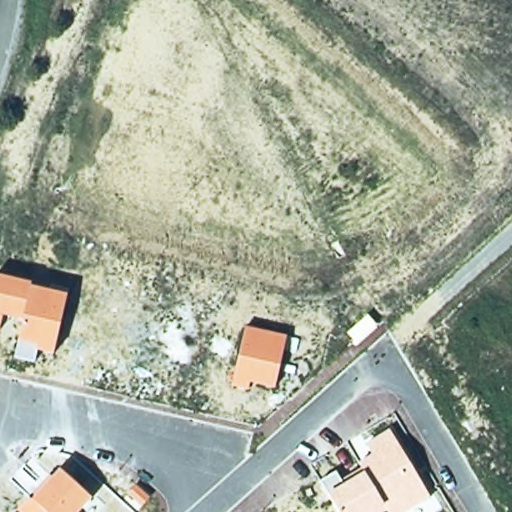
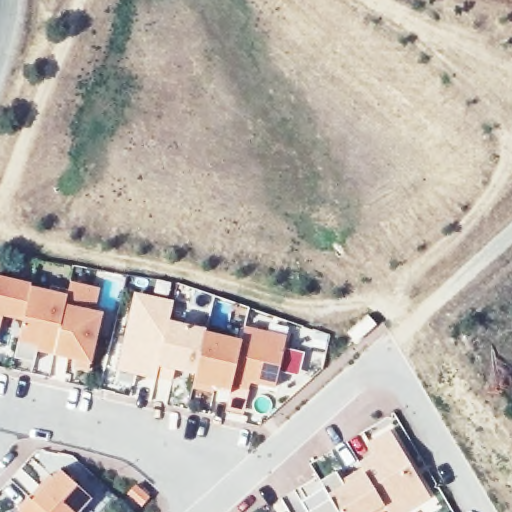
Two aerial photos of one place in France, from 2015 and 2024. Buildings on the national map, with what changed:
unchanged [(37,352),(35,362),(15,359),(22,320),(3,316),(0,330),(0,275),(32,283),(31,286),(67,294),(54,355),(37,352)]
new [(65,304),(67,294),(70,280),(100,287),(95,310),(102,312),(90,364),(54,355),(65,304)]
new [(172,301),(168,320),(205,327),(204,331),(195,374),(175,370),(170,382),(135,374),(133,384),(113,380),(132,292),(172,301)]
unchanged [(275,388),(250,385),(249,390),(232,387),(245,326),(287,335),(275,388)]
new [(195,374),(204,331),(242,340),(232,387),(230,393),(212,390),(212,392),(192,387),(195,374)]
unchanged [(407,512),(386,512),(386,511),(385,512),(338,512),(323,487),(320,481),(337,471),(342,479),(360,468),(357,463),(370,455),(365,443),(389,430),(430,498),(407,512)]
unchanged [(16,511),(30,497),(33,499),(60,468),(92,499),(80,512),(17,512),(16,511)]
new [(338,512),(307,512),(307,511),(300,501),(323,487),(338,512)]

